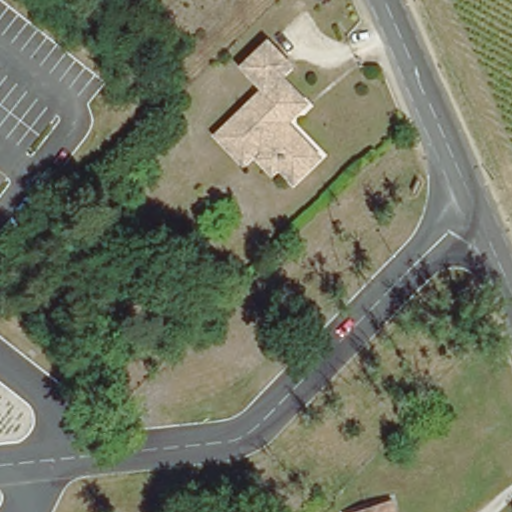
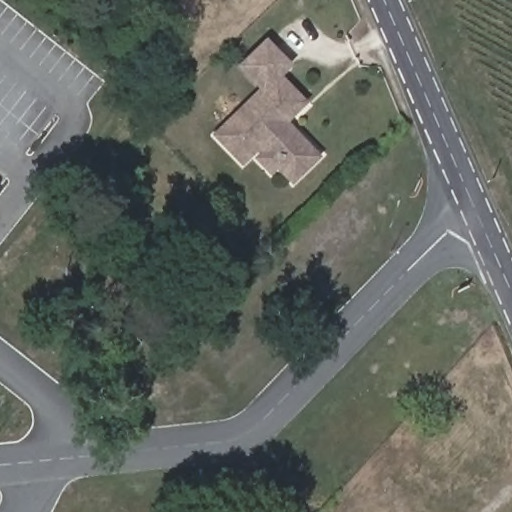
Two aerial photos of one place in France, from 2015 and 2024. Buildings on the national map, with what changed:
unchanged [(256,149),(262,142),(255,136),(240,151),(214,125),(260,79),(239,56),(264,32),(285,55),(275,66),(300,92),(281,112),(314,145),(289,170),(273,155),(267,160),(256,149)]
unchanged [(385,499),(389,512),(348,512),(385,499)]

